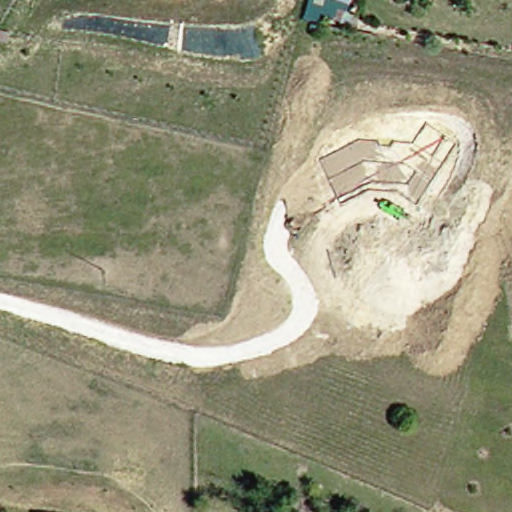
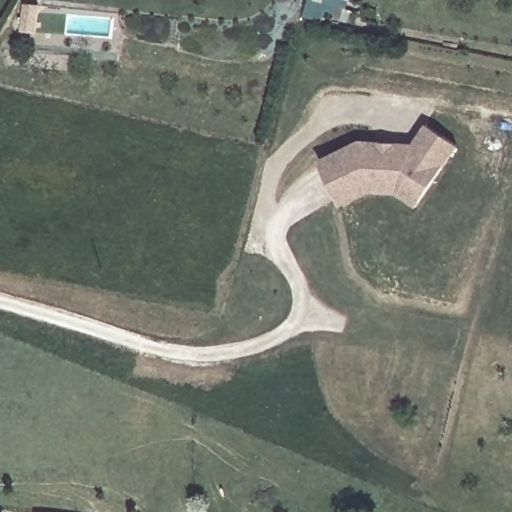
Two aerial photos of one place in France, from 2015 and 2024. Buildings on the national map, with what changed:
new [(338,7),(336,12),(326,9),(322,23),(303,17),(309,0),(351,0),(348,10),(338,7)]
new [(459,149),(416,207),(397,195),(369,193),(341,209),(320,157),(356,140),(412,142),(424,125),(459,149)]

